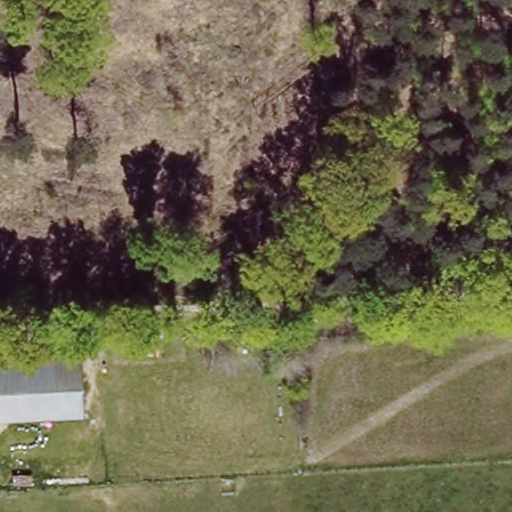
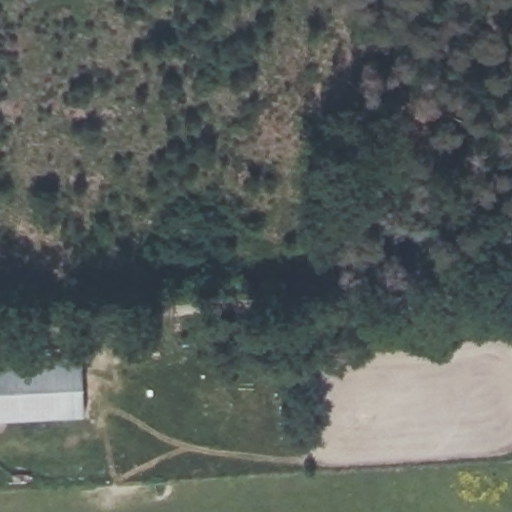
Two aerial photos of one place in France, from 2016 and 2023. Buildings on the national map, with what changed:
unchanged [(74,402),(0,404),(0,377),(40,375),(40,349),(73,348),(74,402)]
unchanged [(40,349),(40,375),(0,377),(0,350),(40,349)]
unchanged [(74,416),(0,417),(0,404),(74,402),(74,416)]

